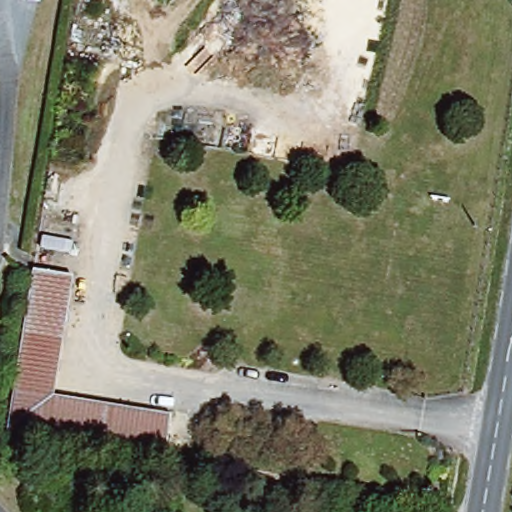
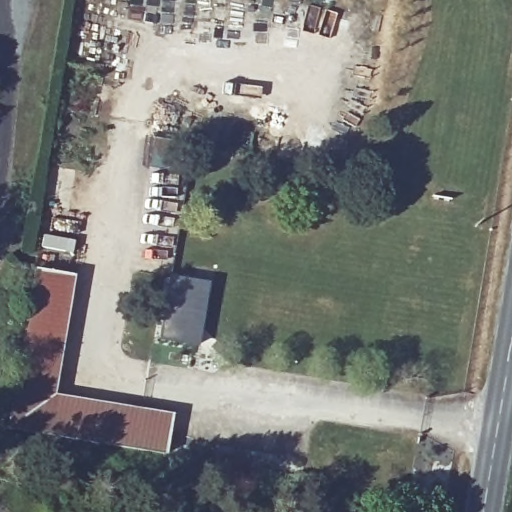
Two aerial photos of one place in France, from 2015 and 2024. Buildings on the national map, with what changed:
unchanged [(35,272),(75,280),(66,338),(26,332),(35,272)]
new [(196,347),(159,340),(171,276),(209,283),(196,347)]
unchanged [(26,332),(66,338),(59,392),(171,413),(165,455),(10,428),(26,332)]

